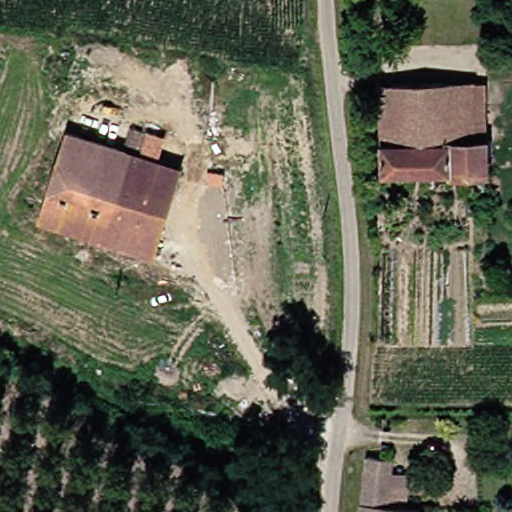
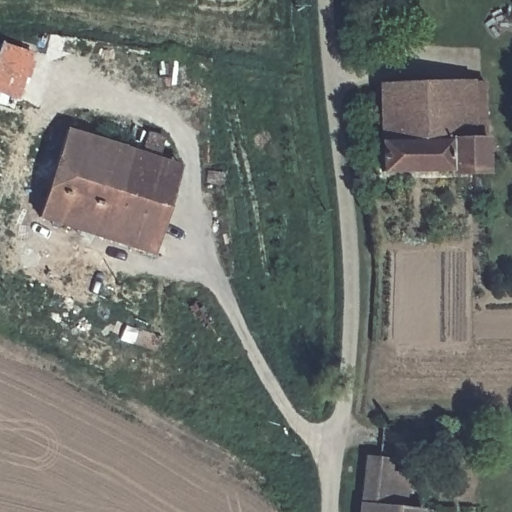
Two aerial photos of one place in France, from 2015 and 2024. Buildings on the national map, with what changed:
new [(35,54),(18,100),(0,94),(0,48),(2,41),(35,54)]
unchanged [(399,89),(411,89),(439,89),(460,89),(472,89),(472,169),(372,169),(370,89),(399,89)]
unchanged [(35,219),(64,132),(114,147),(121,125),(152,134),(145,155),(124,149),(102,213),(133,222),(125,247),(35,219)]
unchanged [(172,164),(145,252),(125,247),(133,222),(102,213),(124,149),(145,155),(172,164)]
unchanged [(416,512),(350,512),(355,436),(382,437),(382,451),(402,451),(401,484),(415,484),(416,512)]

